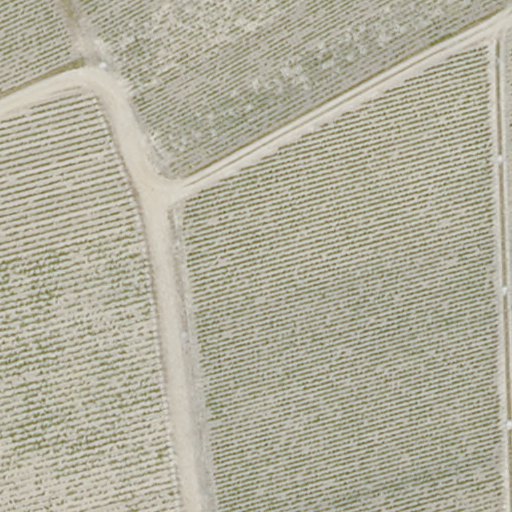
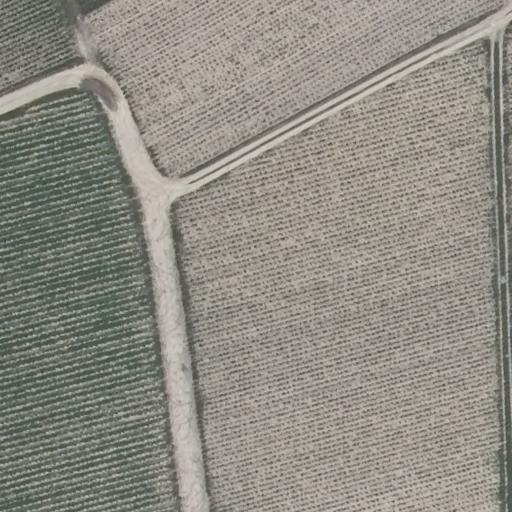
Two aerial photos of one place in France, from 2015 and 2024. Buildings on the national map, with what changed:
[]

